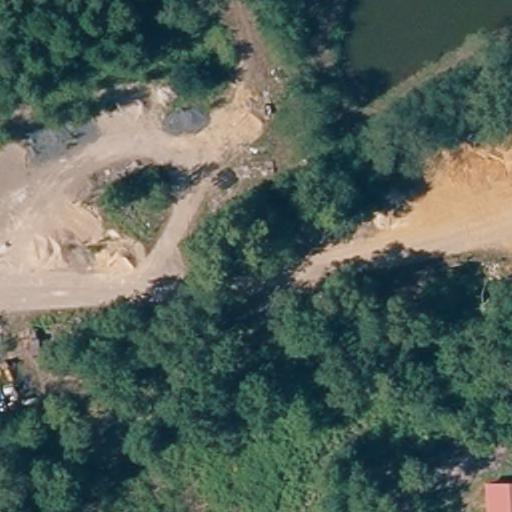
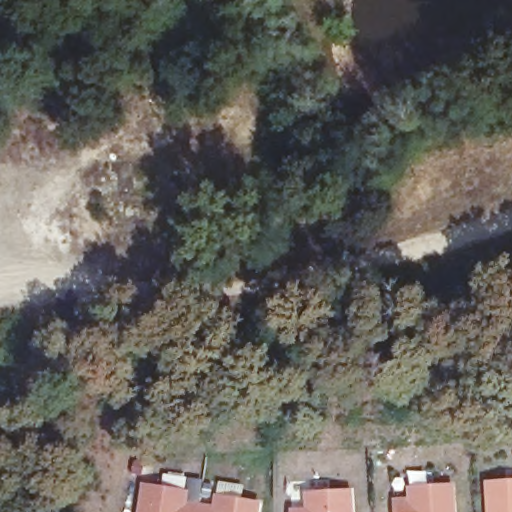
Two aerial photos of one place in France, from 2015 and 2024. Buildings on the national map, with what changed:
unchanged [(486,512),(483,480),(512,480),(512,512),(486,512)]
new [(394,512),(393,499),(406,498),(405,487),(453,483),(456,512),(394,512)]
new [(303,507),(303,491),(352,487),(353,512),(288,512),(288,508),(303,507)]
new [(181,494),(180,505),(195,508),(194,512),(136,512),(140,488),(181,494)]
new [(211,505),(214,494),(259,501),(257,512),(194,512),(195,508),(195,503),(211,505)]

